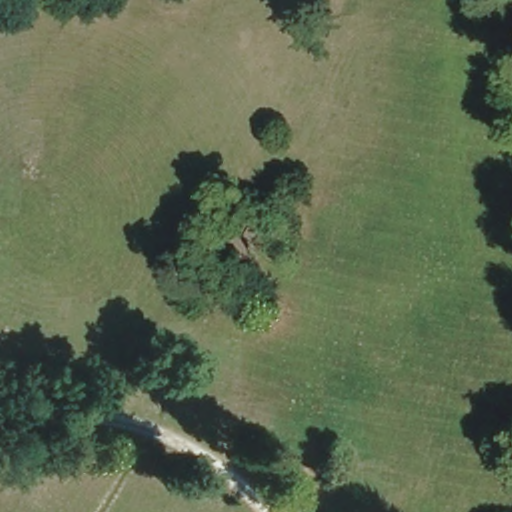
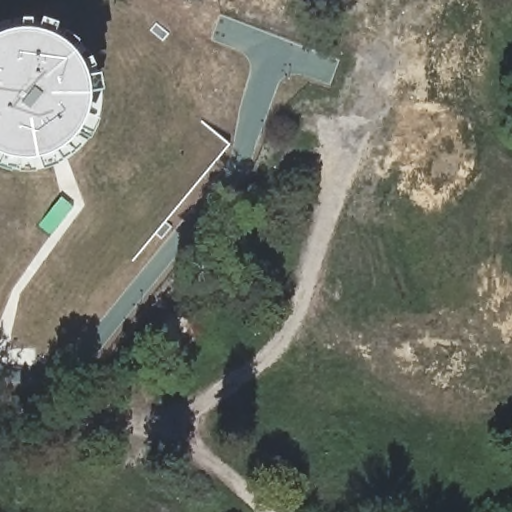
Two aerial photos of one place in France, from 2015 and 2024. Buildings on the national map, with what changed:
new [(20,31),(31,30),(43,32),(53,36),(63,41),(72,48),(79,57),(85,67),(89,77),(91,88),(91,100),(90,111),(86,121),(80,131),(74,140),(65,147),(55,153),(45,157),(34,160),(23,160),(11,158),(0,154),(0,36),(9,33),(20,31)]

